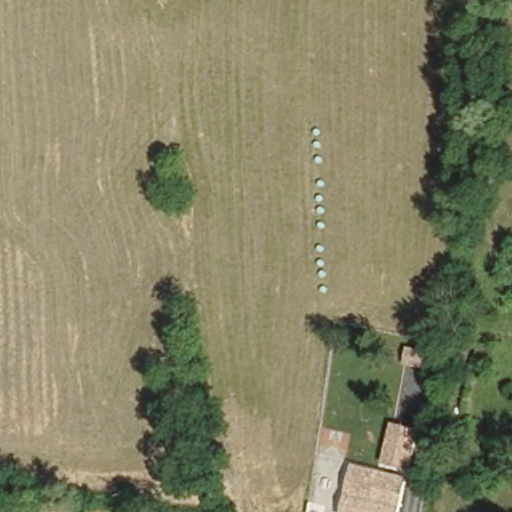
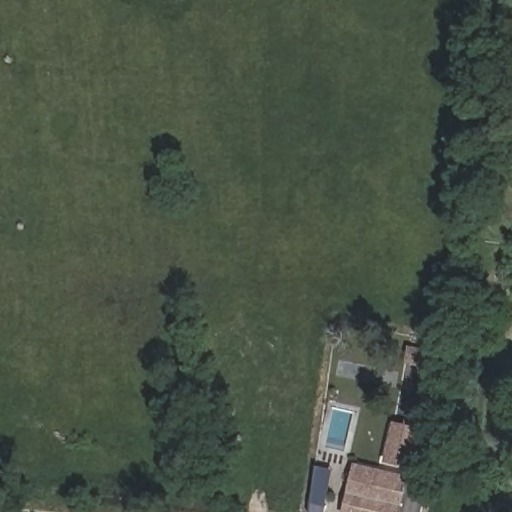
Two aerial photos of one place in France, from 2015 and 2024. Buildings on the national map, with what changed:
unchanged [(418,423),(411,459),(386,455),(393,419),(418,423)]
unchanged [(355,462),(408,472),(400,512),(348,512),(344,511),(355,462)]

